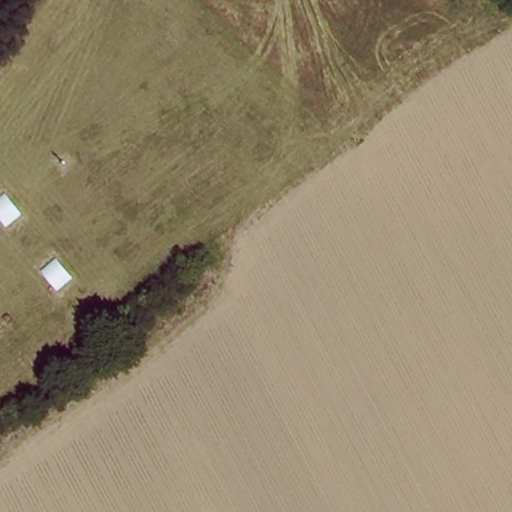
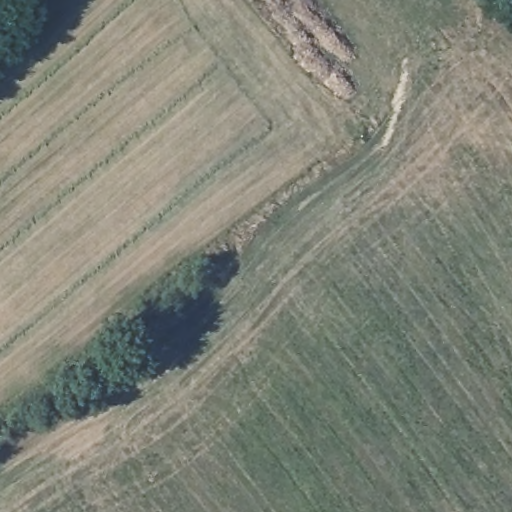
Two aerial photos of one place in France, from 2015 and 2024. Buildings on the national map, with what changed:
[]

